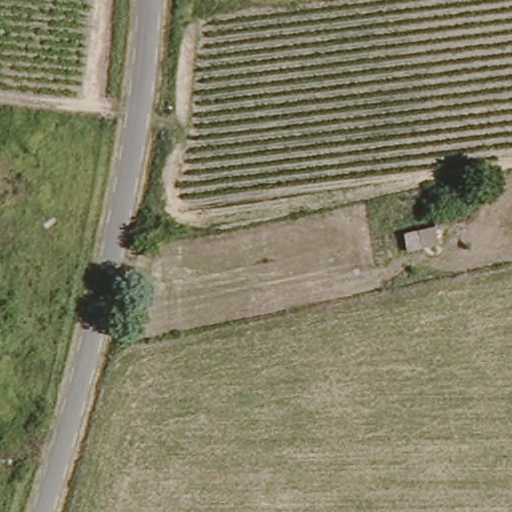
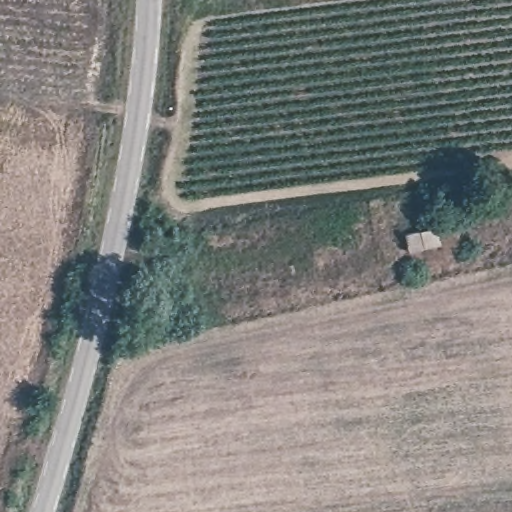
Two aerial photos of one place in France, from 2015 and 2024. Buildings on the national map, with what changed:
unchanged [(437,230),(435,212),(454,208),(457,229),(447,232),(450,247),(410,255),(403,234),(437,230)]

